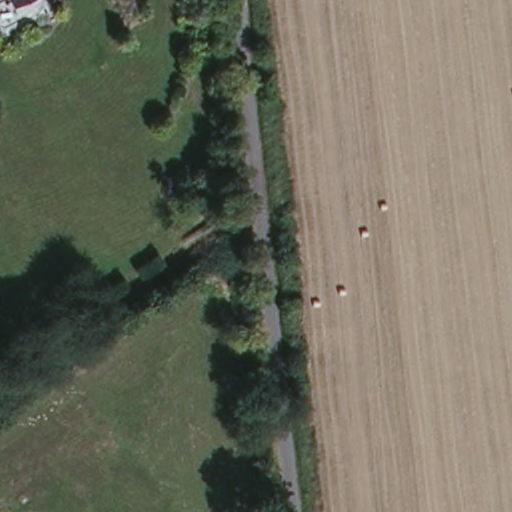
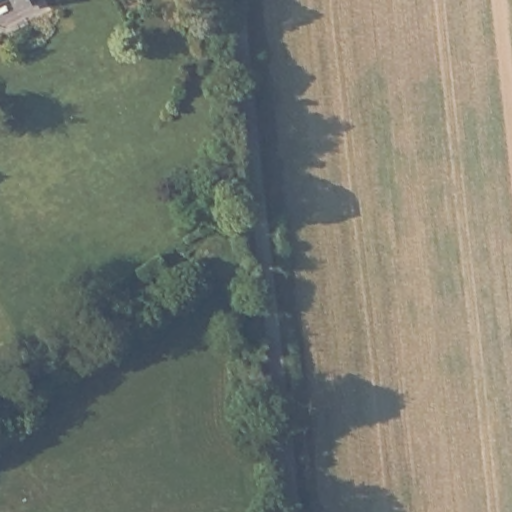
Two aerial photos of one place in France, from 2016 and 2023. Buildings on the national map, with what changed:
unchanged [(24,0),(16,4),(14,0),(24,0)]

